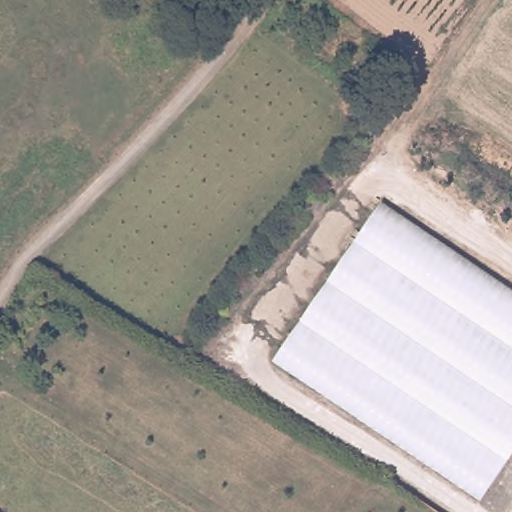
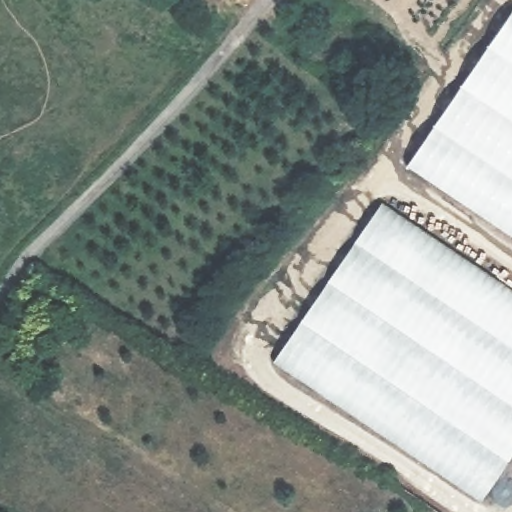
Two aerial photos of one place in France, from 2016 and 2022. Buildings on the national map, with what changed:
new [(407,166),(512,11),(512,237),(407,166)]
unchanged [(381,202),(512,291),(512,457),(483,499),(274,361),(381,202)]

